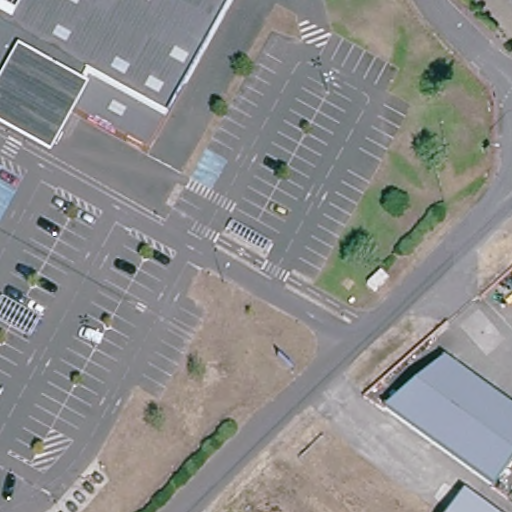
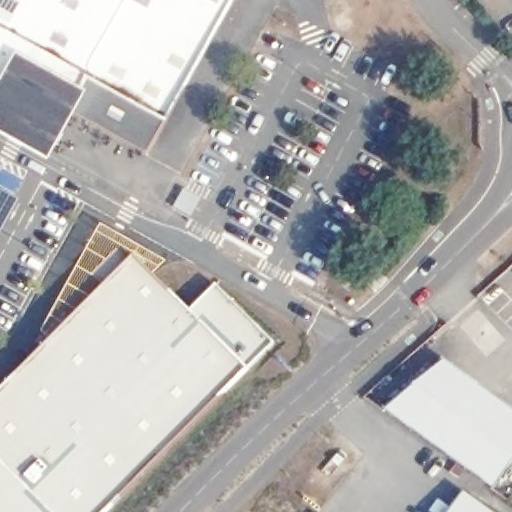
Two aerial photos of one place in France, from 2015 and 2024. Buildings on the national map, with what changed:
unchanged [(170,116),(149,154),(105,130),(71,111),(60,132),(54,142),(14,119),(0,112),(0,100),(1,99),(0,98),(0,0),(234,0),(199,63),(170,116)]
new [(104,512),(0,512),(0,392),(108,285),(95,275),(118,252),(130,262),(135,257),(189,308),(217,283),(275,341),(249,368),(104,512)]
unchanged [(381,273),(388,281),(375,294),(374,293),(368,287),(378,276),(381,273)]
unchanged [(439,351),(512,407),(512,452),(491,482),(381,402),(439,351)]
unchanged [(468,491),(496,512),(451,512),(468,491)]

